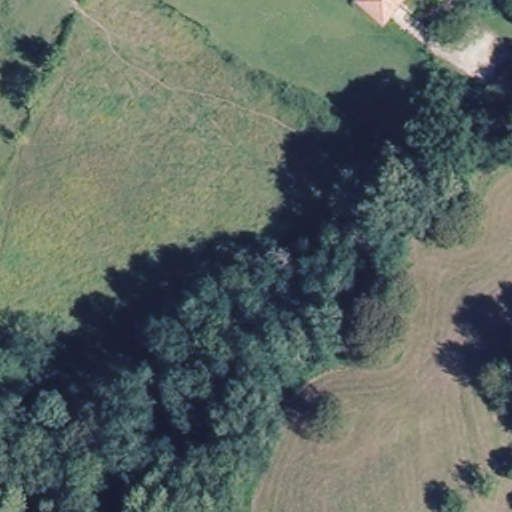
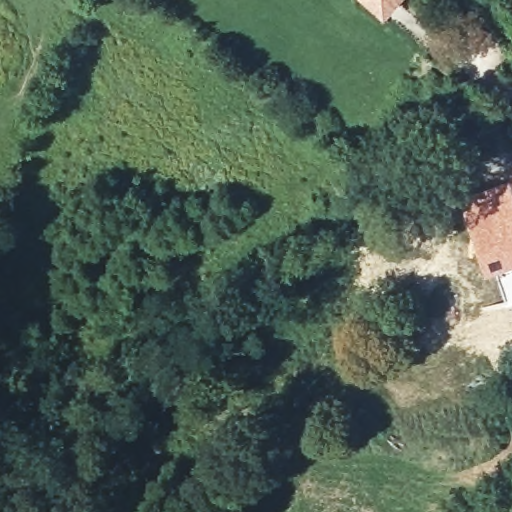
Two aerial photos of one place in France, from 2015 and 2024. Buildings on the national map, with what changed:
unchanged [(370,0),(399,0),(387,15),(370,0)]
new [(489,185),(512,175),(512,263),(487,271),(459,196),(489,185)]

